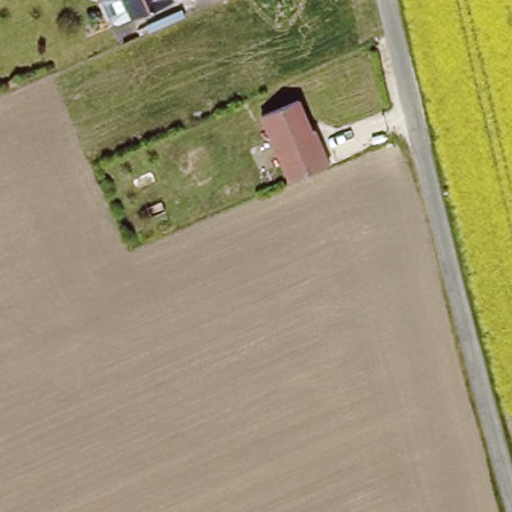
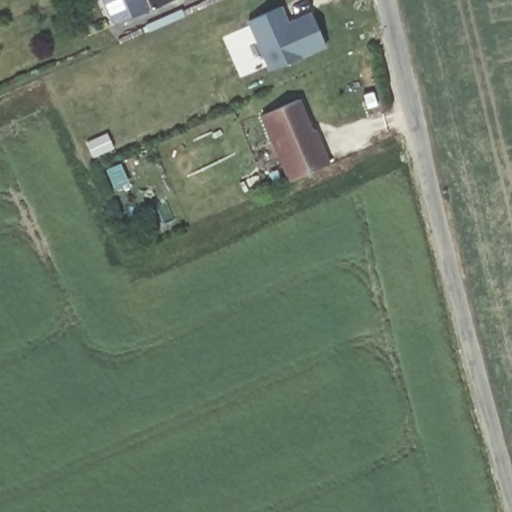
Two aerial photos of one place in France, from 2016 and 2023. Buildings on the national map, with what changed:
unchanged [(162,0),(163,3),(132,16),(125,0),(162,0)]
new [(250,19),(284,5),(290,21),(312,11),(326,46),(269,70),(250,19)]
unchanged [(297,101),(327,163),(287,183),(260,119),(297,101)]

